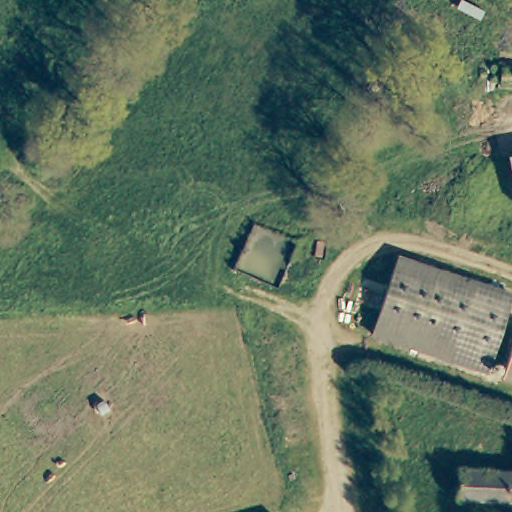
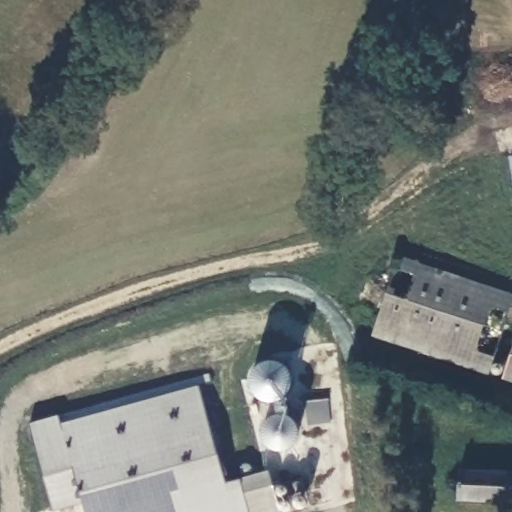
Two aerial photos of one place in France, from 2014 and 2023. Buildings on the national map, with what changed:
unchanged [(512,154),(512,199),(505,155),(512,154)]
unchanged [(512,306),(492,370),(375,332),(398,257),(464,278),(512,294),(512,306)]
unchanged [(512,377),(505,375),(512,352),(512,377)]
new [(275,358),(284,363),(289,372),(290,387),(283,397),(273,402),(261,398),(254,392),(250,382),(252,371),(264,358),(275,358)]
new [(51,512),(28,422),(57,415),(60,422),(199,385),(225,482),(269,468),(282,510),(274,512),(86,512),(84,506),(51,512)]
new [(280,411),(290,414),(296,422),(299,432),(296,446),(288,450),(272,448),(264,441),(260,430),(273,413),(280,411)]
unchanged [(512,450),(512,499),(459,498),(459,466),(510,470),(512,450)]

